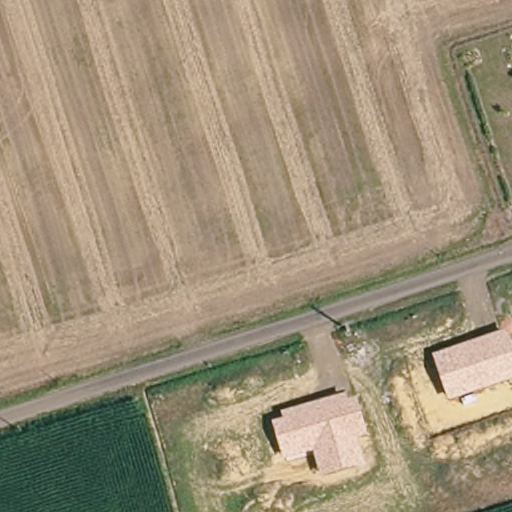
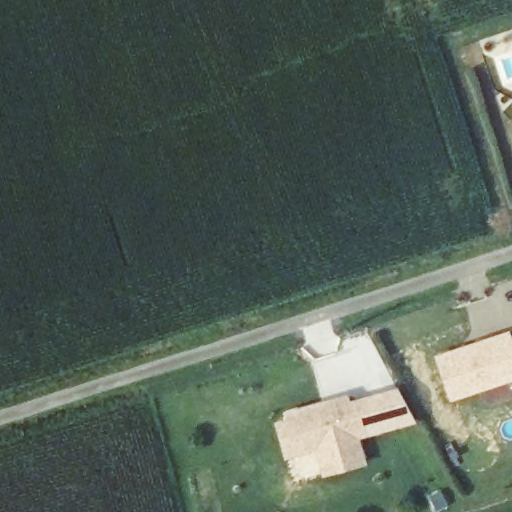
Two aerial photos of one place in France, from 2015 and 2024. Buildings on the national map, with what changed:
unchanged [(507,332),(512,344),(512,380),(449,401),(433,355),(507,332)]
new [(397,387),(416,423),(368,434),(357,399),(397,387)]
unchanged [(314,454),(284,459),(272,421),(284,418),(282,413),(346,393),(348,399),(357,397),(368,434),(358,438),(365,464),(320,475),(314,454)]

